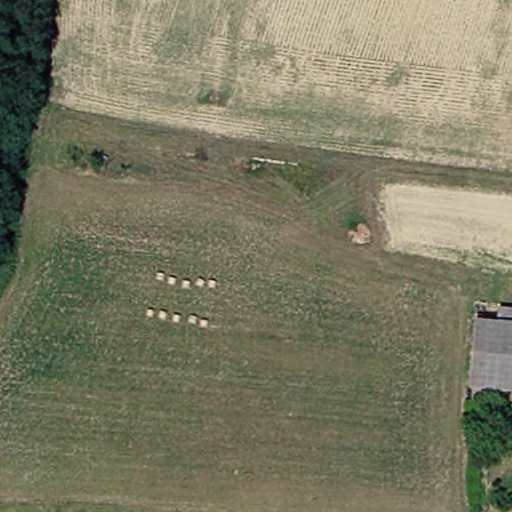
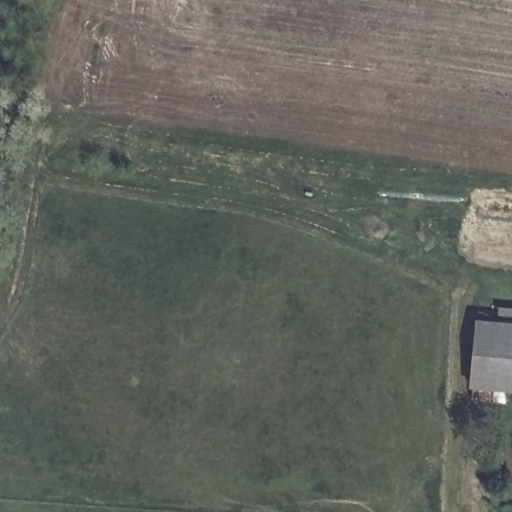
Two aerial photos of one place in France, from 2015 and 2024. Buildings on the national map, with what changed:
unchanged [(512,317),(512,392),(463,393),(462,346),(463,316),(512,317)]

